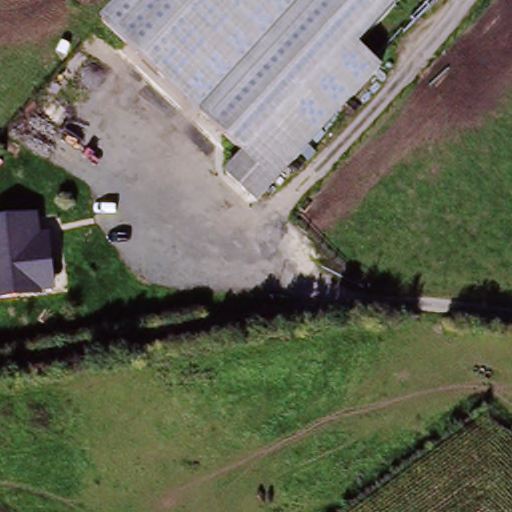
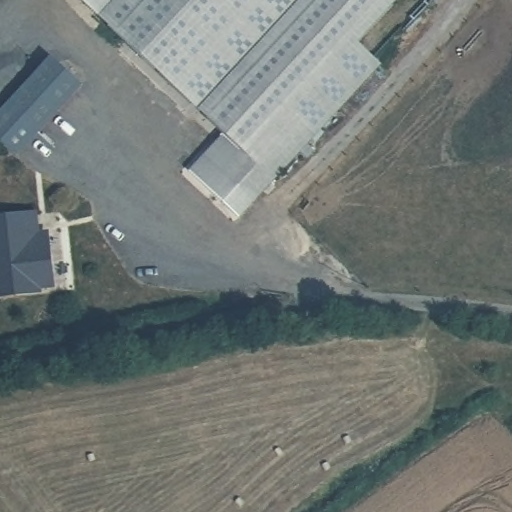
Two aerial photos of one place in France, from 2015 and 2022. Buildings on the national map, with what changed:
unchanged [(73,0),(405,0),(359,49),(383,71),(262,201),(232,173),(250,154),(73,0)]
new [(15,159),(0,145),(0,112),(51,58),(84,86),(15,159)]
new [(250,154),(232,173),(260,199),(240,219),(188,169),(225,131),(250,154)]
unchanged [(47,229),(57,282),(42,285),(43,290),(0,300),(0,215),(35,209),(38,230),(47,229)]

